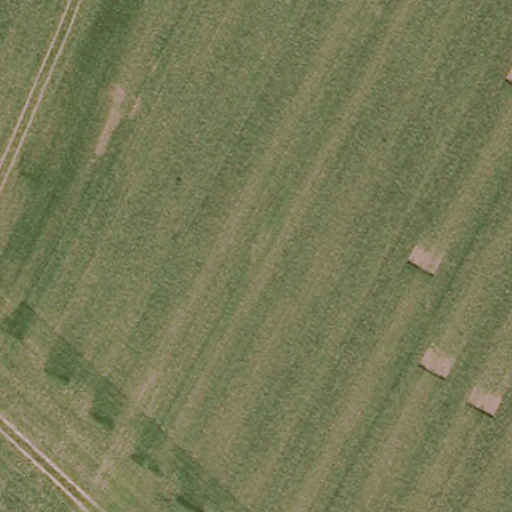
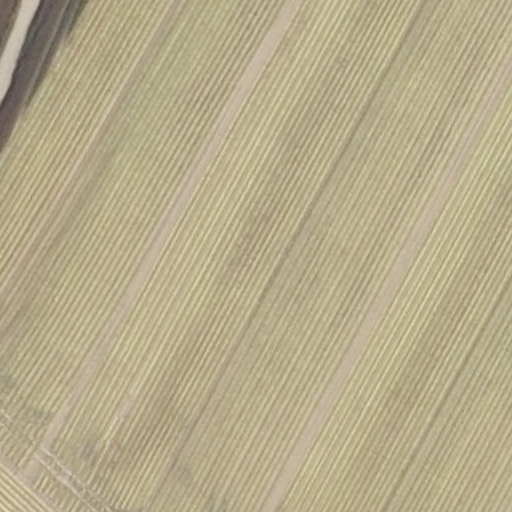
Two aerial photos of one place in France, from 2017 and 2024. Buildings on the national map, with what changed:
[]

